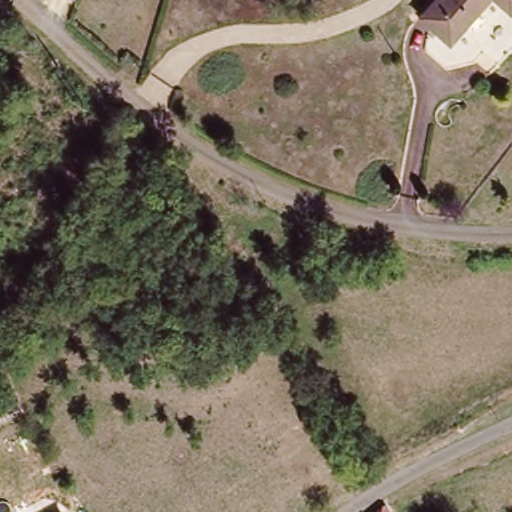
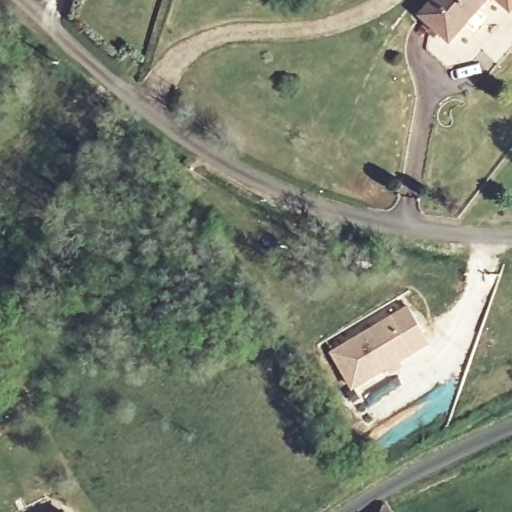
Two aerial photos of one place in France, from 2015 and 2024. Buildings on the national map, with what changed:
unchanged [(415,13),(428,0),(483,0),(442,41),(415,13)]
unchanged [(487,0),(512,0),(512,10),(507,16),(487,0)]
new [(432,343),(352,392),(330,352),(409,306),(432,343)]
unchanged [(65,507),(67,512),(55,512),(65,507)]
unchanged [(389,508),(391,512),(384,512),(389,508)]

